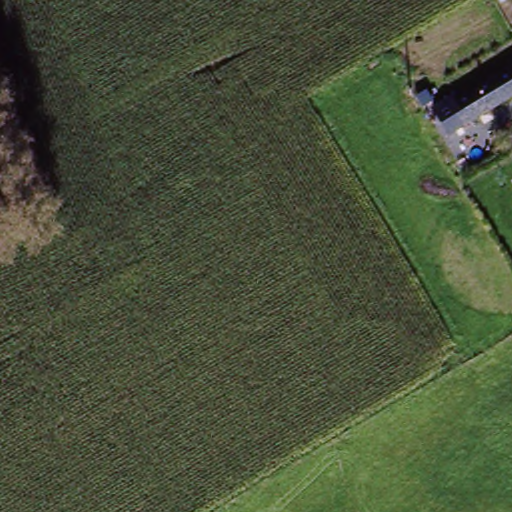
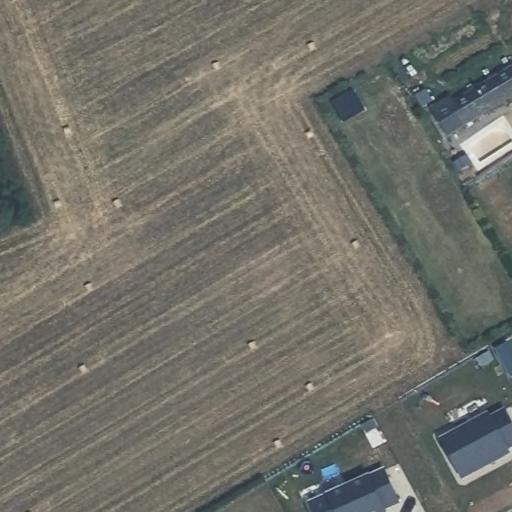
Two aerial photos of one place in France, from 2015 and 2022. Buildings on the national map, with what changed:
unchanged [(457,93),(462,100),(512,68),(512,100),(452,140),(431,109),(457,93)]
new [(505,409),(512,422),(512,449),(506,453),(487,419),(505,409)]
new [(486,417),(507,456),(461,481),(441,442),(486,417)]
new [(381,474),(395,506),(382,512),(332,512),(326,499),(381,474)]

